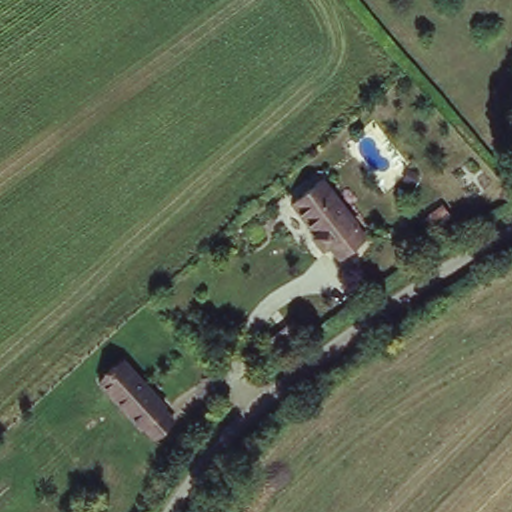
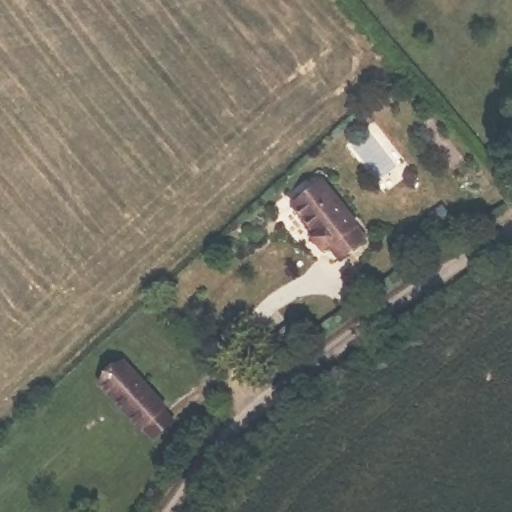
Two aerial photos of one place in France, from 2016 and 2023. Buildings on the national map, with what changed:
unchanged [(340,260),(325,245),(321,249),(310,238),(313,234),(286,205),(316,179),(355,220),(351,224),(366,240),(340,260)]
unchanged [(443,204),(452,219),(432,232),(422,217),(443,204)]
unchanged [(158,439),(146,427),(143,429),(100,382),(125,358),(168,404),(165,408),(178,421),(158,439)]

